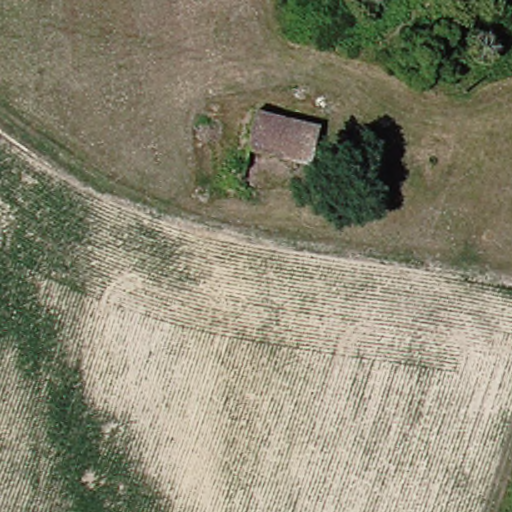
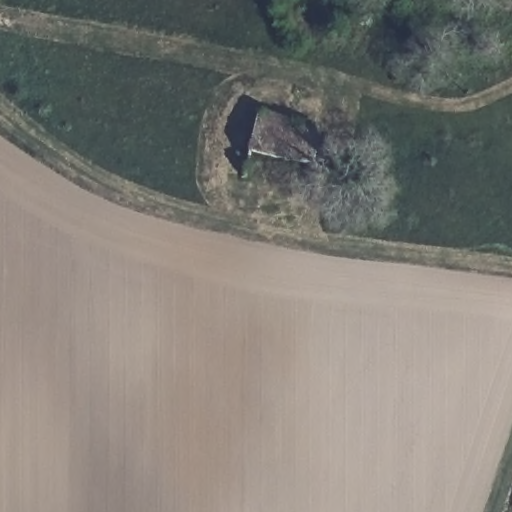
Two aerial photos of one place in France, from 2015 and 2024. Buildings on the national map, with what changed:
unchanged [(261,115),(318,127),(313,162),(256,151),(261,115)]

